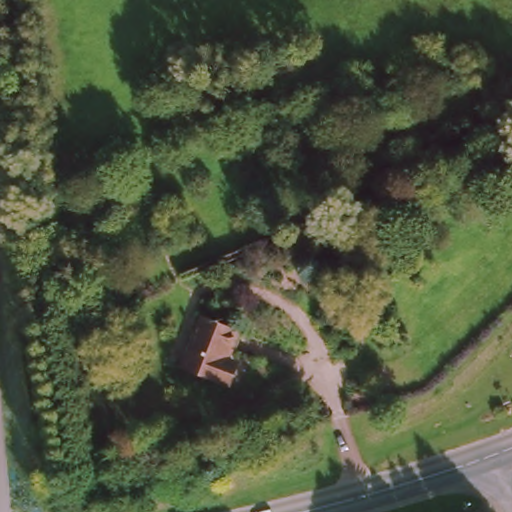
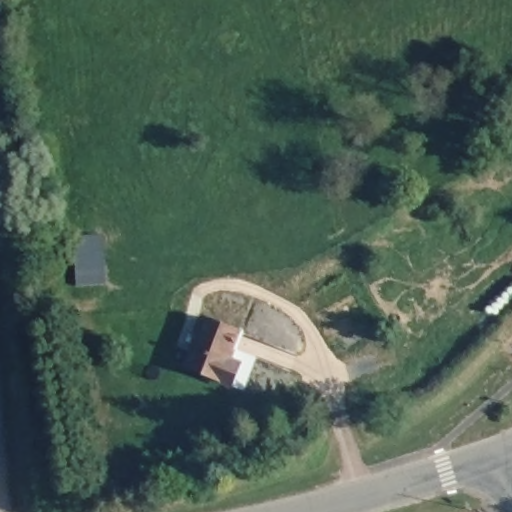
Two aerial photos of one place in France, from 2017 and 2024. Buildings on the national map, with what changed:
unchanged [(239,332),(228,360),(235,363),(227,385),(185,368),(204,318),(239,332)]

